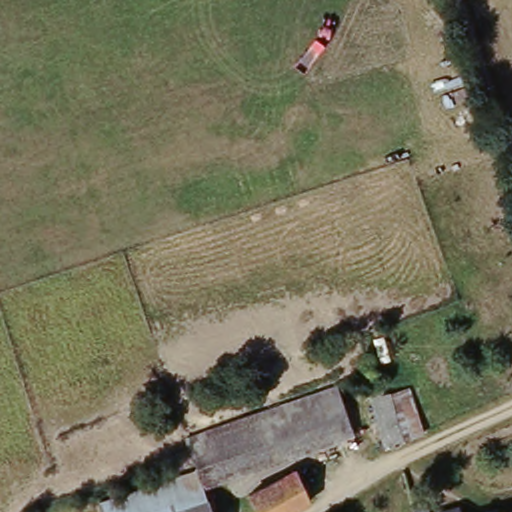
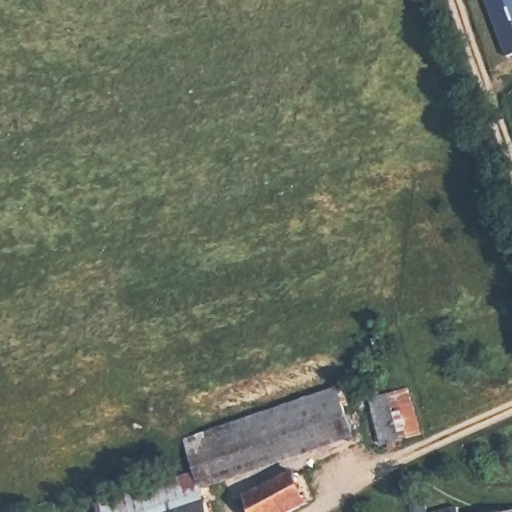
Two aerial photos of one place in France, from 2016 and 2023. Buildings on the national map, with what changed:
new [(512,55),(508,56),(487,0),(512,0),(512,55)]
unchanged [(187,437),(338,383),(353,432),(202,483),(197,467),(187,437)]
unchanged [(390,443),(376,400),(396,392),(415,386),(428,430),(429,432),(390,443)]
unchanged [(104,512),(100,500),(197,467),(202,483),(207,501),(172,512),(104,512)]
unchanged [(308,501),(287,512),(256,512),(247,496),(292,471),(308,501)]
unchanged [(211,512),(172,512),(207,501),(211,512)]
unchanged [(465,502),(467,512),(427,512),(433,510),(465,502)]
unchanged [(512,512),(491,512),(512,506),(512,512)]

